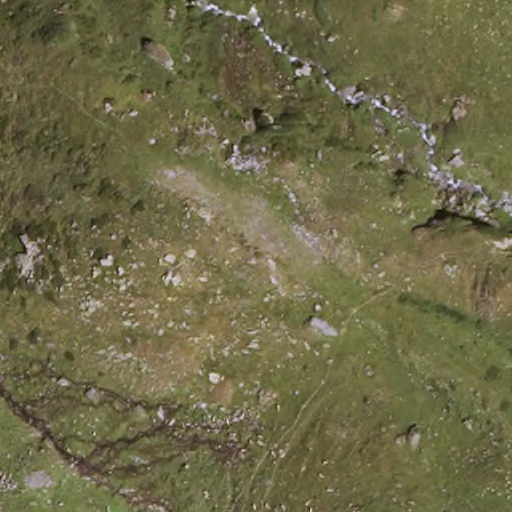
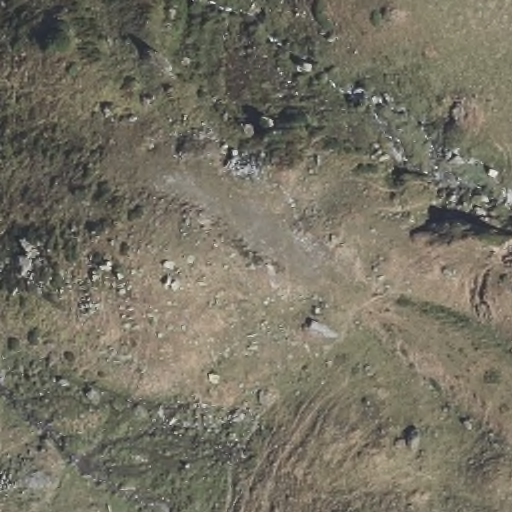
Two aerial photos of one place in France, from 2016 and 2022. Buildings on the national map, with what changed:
[]

